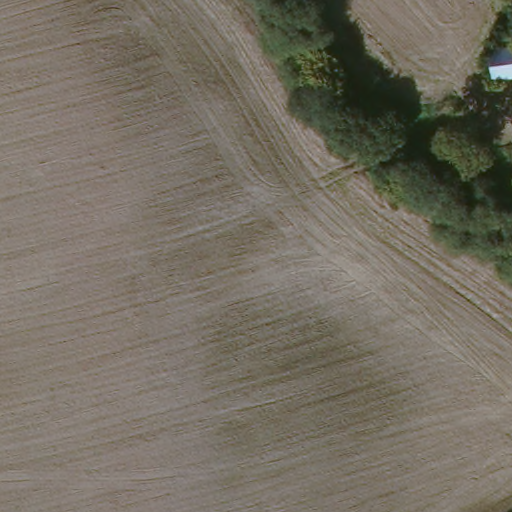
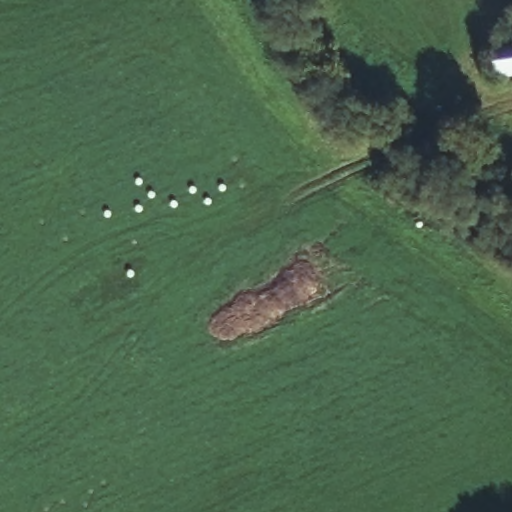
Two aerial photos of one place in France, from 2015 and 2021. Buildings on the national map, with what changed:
unchanged [(512,81),(488,87),(481,52),(512,49),(512,81)]

